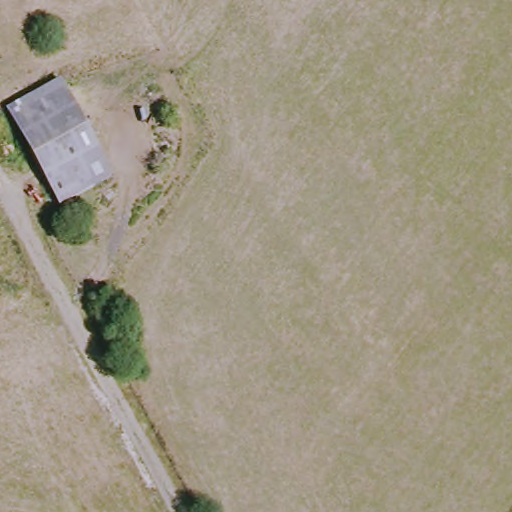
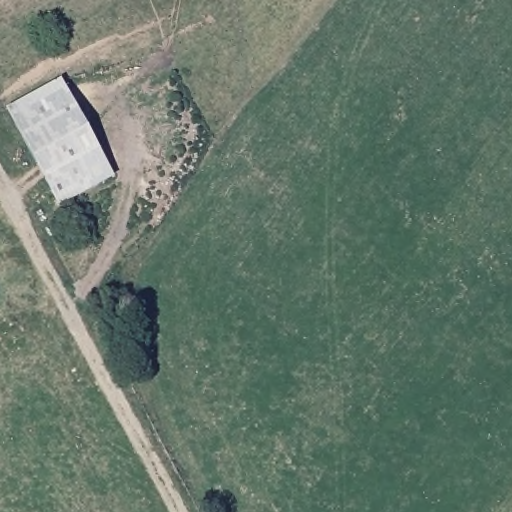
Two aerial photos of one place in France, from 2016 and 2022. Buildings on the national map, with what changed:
unchanged [(55,78),(108,169),(52,201),(3,108),(55,78)]

